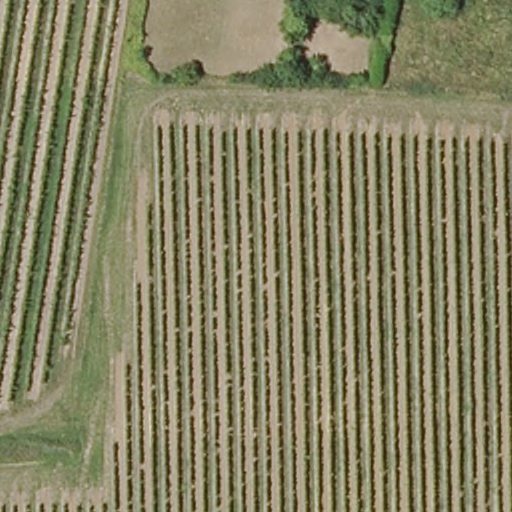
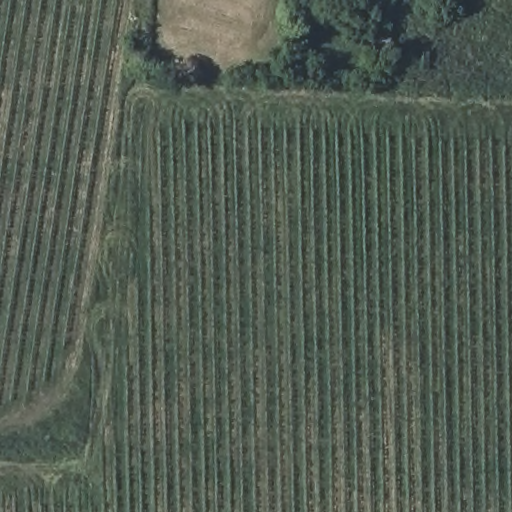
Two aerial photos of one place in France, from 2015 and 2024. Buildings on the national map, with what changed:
unchanged [(386,50),(371,48),(374,33),(387,35),(386,50)]

